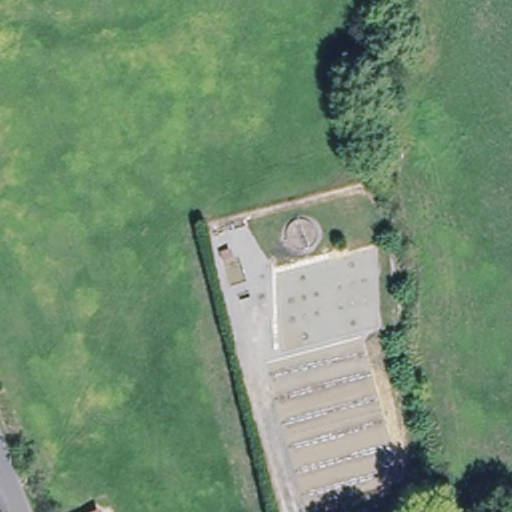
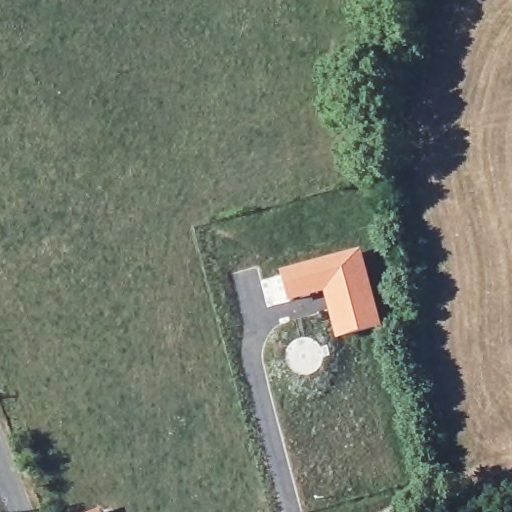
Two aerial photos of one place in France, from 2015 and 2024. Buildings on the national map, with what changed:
new [(382,328),(337,341),(324,295),(288,304),(280,272),(361,251),(382,328)]
unchanged [(94,512),(88,512),(94,510),(94,512)]

